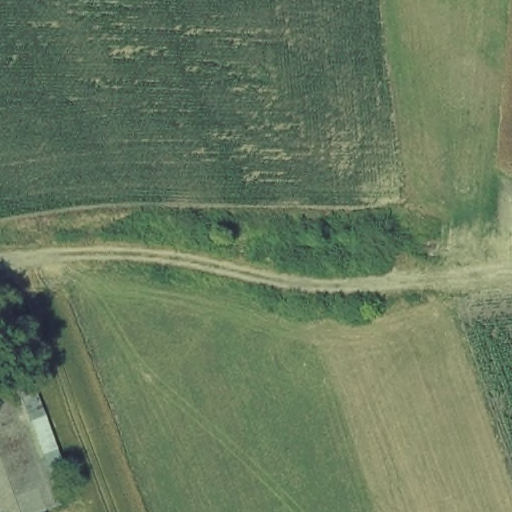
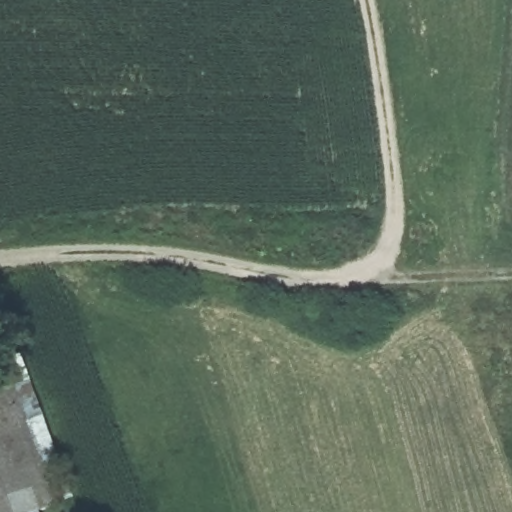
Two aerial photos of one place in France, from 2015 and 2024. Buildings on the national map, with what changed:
unchanged [(30,512),(0,512),(0,391),(10,388),(54,503),(30,512)]

